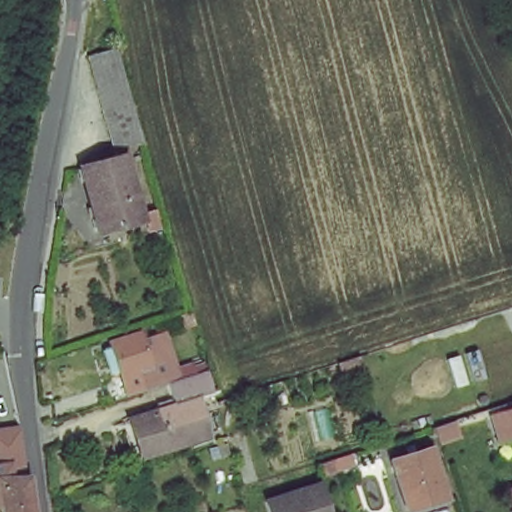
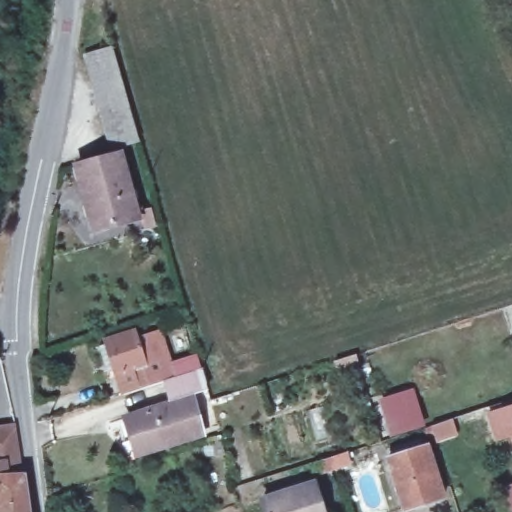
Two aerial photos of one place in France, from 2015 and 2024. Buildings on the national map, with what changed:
unchanged [(110,148),(105,131),(84,54),(111,47),(122,89),(132,124),(136,141),(110,148)]
unchanged [(74,170),(117,158),(136,221),(91,234),(74,170)]
unchanged [(115,375),(106,344),(130,337),(135,348),(156,342),(166,377),(161,378),(163,386),(137,394),(134,386),(138,384),(133,370),(115,375)]
unchanged [(132,420),(177,407),(171,383),(202,374),(207,391),(191,396),(202,438),(141,454),(132,420)]
new [(419,384),(434,431),(424,434),(394,444),(379,396),(419,384)]
unchanged [(491,442),(484,418),(486,417),(484,411),(512,402),(512,436),(491,442)]
unchanged [(13,472),(23,471),(27,512),(0,512),(0,422),(9,421),(13,472)]
unchanged [(430,501),(405,508),(391,458),(429,446),(439,479),(444,496),(430,501)]
unchanged [(331,473),(327,460),(345,454),(348,466),(331,473)]
unchanged [(508,512),(500,482),(512,479),(512,510),(508,512)]
unchanged [(314,485),(321,512),(264,512),(261,501),(314,485)]

